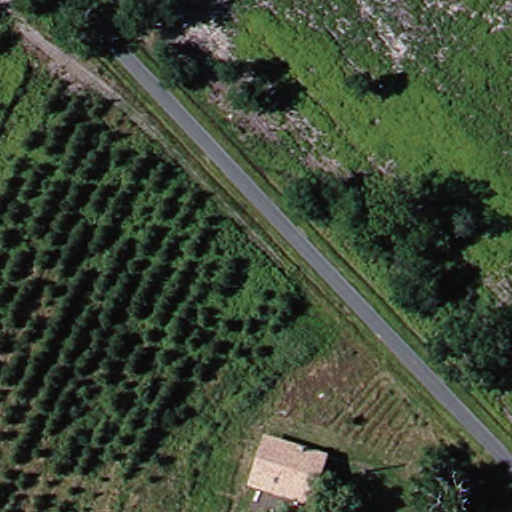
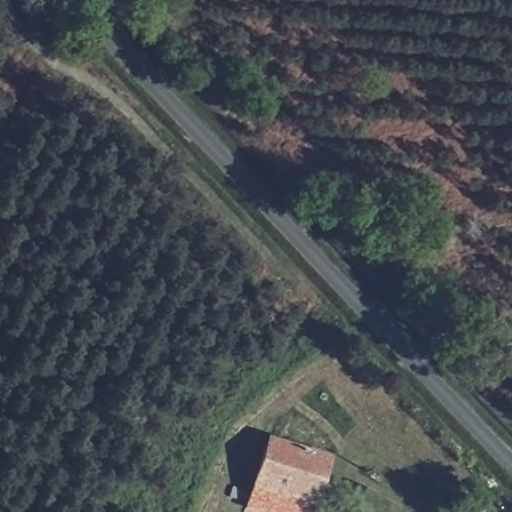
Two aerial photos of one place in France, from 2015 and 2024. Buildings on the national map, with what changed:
unchanged [(307,502),(250,490),(259,445),(314,456),(307,502)]

